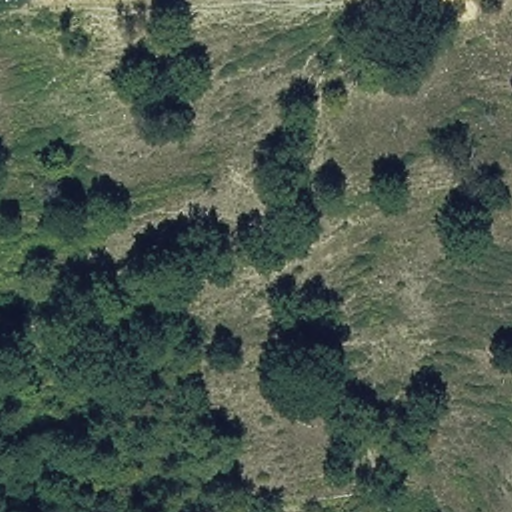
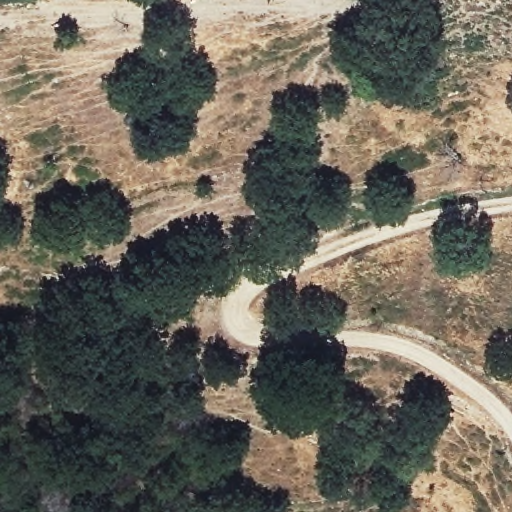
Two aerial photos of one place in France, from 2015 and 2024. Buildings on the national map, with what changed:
[]

